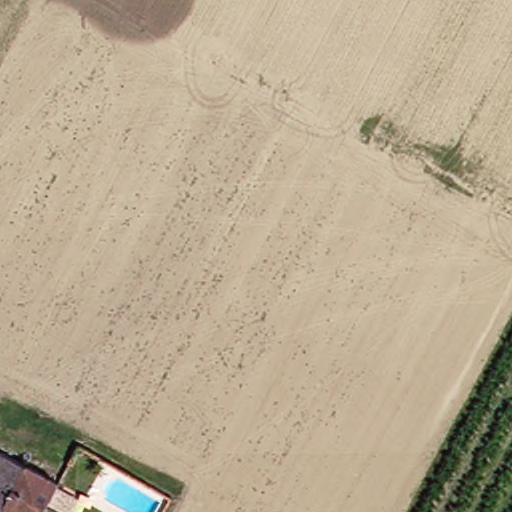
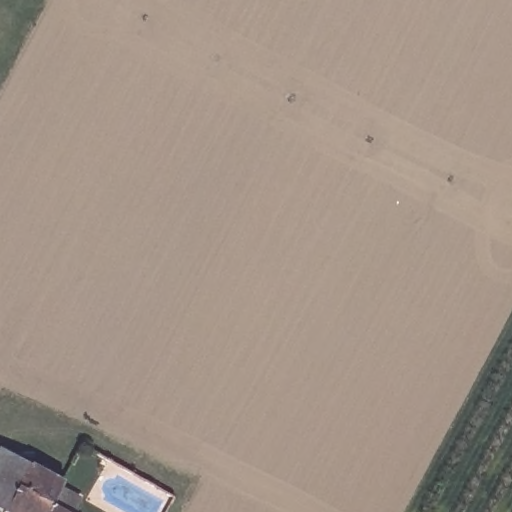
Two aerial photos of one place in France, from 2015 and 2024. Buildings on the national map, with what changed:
unchanged [(0,501),(0,448),(1,446),(29,463),(6,505),(0,501)]
unchanged [(50,499),(70,512),(8,512),(4,509),(6,505),(29,463),(60,481),(50,499)]

